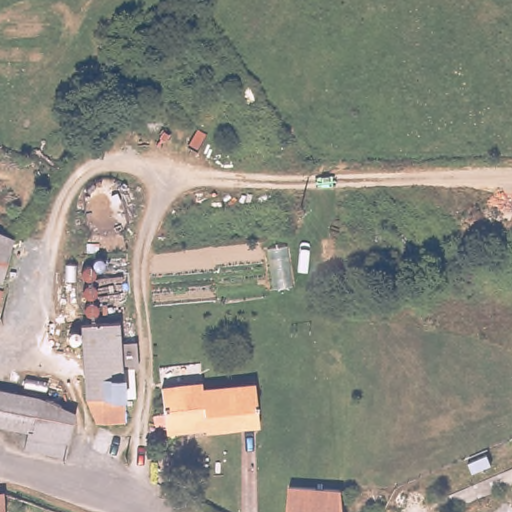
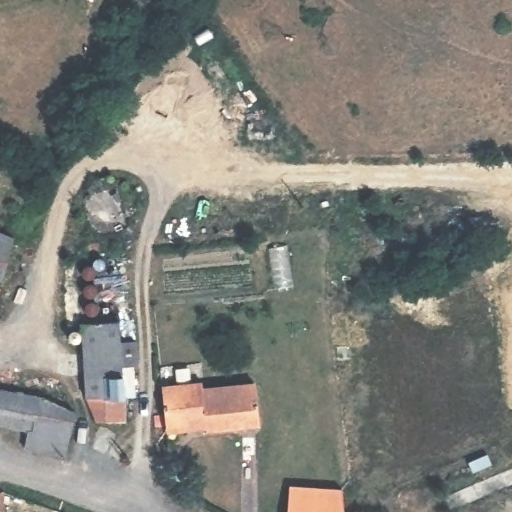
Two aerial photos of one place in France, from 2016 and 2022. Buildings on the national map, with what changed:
unchanged [(12,233),(10,245),(6,278),(0,278),(0,230),(12,233)]
unchanged [(127,260),(129,314),(80,315),(80,258),(127,260)]
unchanged [(103,416),(95,400),(91,382),(90,372),(87,347),(84,326),(118,320),(121,343),(123,370),(128,416),(103,416)]
unchanged [(204,431),(203,426),(164,431),(158,389),(198,383),(198,388),(251,381),(258,424),(204,431)]
unchanged [(34,393),(73,412),(65,452),(24,448),(27,428),(0,425),(0,388),(34,393)]
unchanged [(283,512),(285,491),(313,490),(312,512),(283,512)]
unchanged [(342,512),(312,512),(313,490),(340,491),(342,512)]
unchanged [(1,495),(1,512),(0,512),(0,494),(1,495)]

